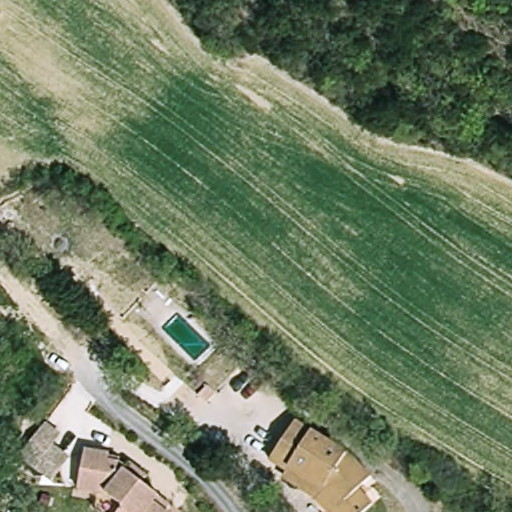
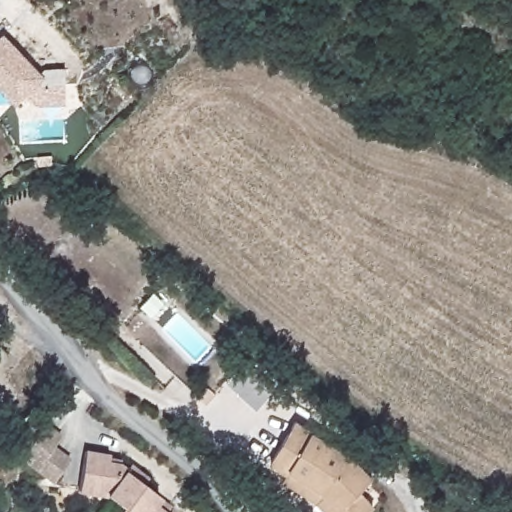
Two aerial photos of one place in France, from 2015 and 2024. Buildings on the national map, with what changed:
new [(46,77),(18,104),(0,86),(0,41),(5,36),(46,77)]
new [(37,86),(65,85),(66,105),(35,105),(26,96),(37,86)]
unchanged [(271,457),(291,411),(358,445),(385,463),(376,476),(396,488),(380,512),(358,512),(350,505),(296,477),(300,472),(271,457)]
unchanged [(60,433),(53,445),(71,459),(51,482),(19,459),(45,423),(60,433)]
unchanged [(108,492),(81,487),(88,447),(111,451),(111,458),(124,460),(131,467),(129,470),(160,495),(159,499),(171,507),(166,512),(119,512),(125,507),(108,492)]

